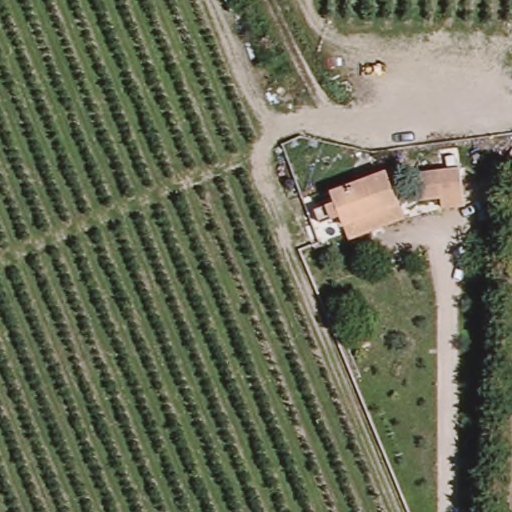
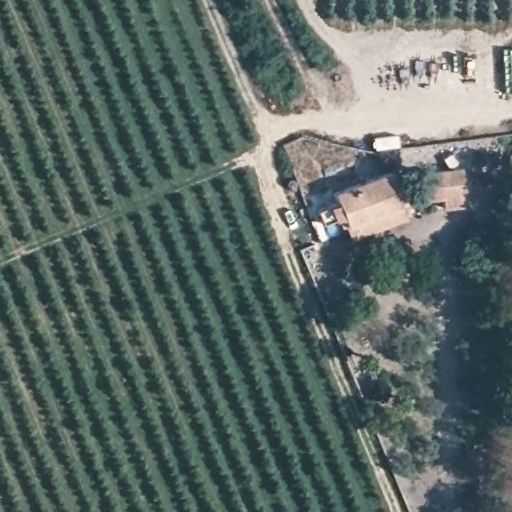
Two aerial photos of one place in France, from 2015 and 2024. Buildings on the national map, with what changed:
unchanged [(431,211),(431,198),(415,197),(415,168),(461,169),(462,211),(431,211)]
unchanged [(346,242),(342,230),(340,223),(317,232),(310,213),(328,204),(326,192),(384,171),(398,209),(402,221),(346,242)]

